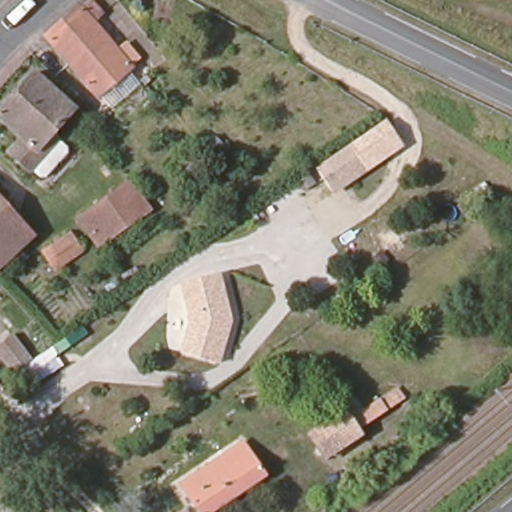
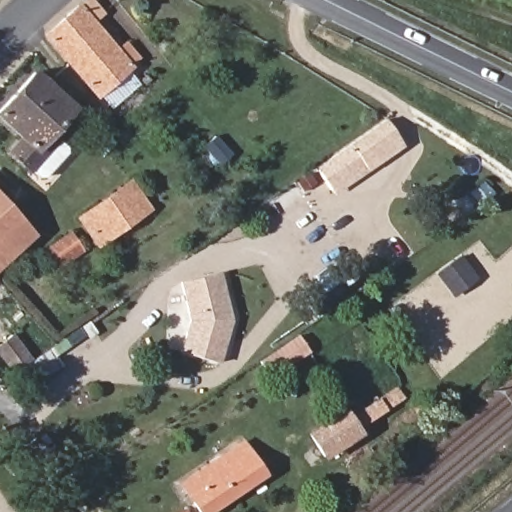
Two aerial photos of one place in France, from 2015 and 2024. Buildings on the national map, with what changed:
unchanged [(104,15),(93,26),(119,56),(131,44),(141,58),(130,69),(134,73),(99,100),(52,40),(49,37),(79,8),(84,13),(95,5),(104,15)]
unchanged [(21,164),(10,151),(24,137),(0,113),(0,111),(37,75),(73,108),(51,131),(60,137),(29,171),(21,164)]
unchanged [(315,165),(386,119),(404,146),(334,194),(315,165)]
unchanged [(151,199),(104,239),(84,218),(133,175),(151,199)]
unchanged [(0,198),(32,237),(18,249),(0,229),(0,198)]
unchanged [(0,265),(0,229),(18,249),(0,265)]
unchanged [(83,247),(56,267),(46,255),(73,234),(83,247)]
unchanged [(219,272),(226,304),(230,319),(221,360),(184,352),(188,330),(191,319),(182,281),(219,272)]
unchanged [(0,342),(11,334),(30,359),(14,371),(0,353),(0,342)]
unchanged [(358,433),(362,439),(326,462),(312,440),(347,417),(351,423),(390,397),(398,408),(358,433)]
unchanged [(266,471),(204,512),(202,512),(182,483),(187,479),(245,439),(266,471)]

